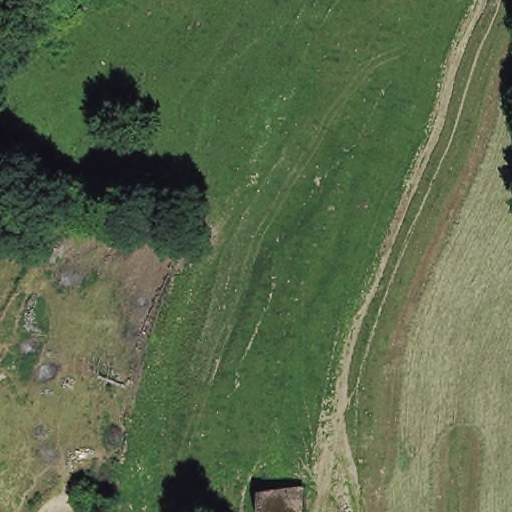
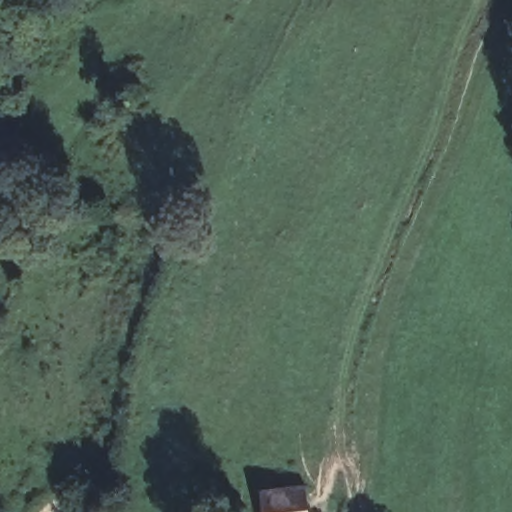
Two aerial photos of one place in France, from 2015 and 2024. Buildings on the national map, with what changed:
unchanged [(307,487),(310,512),(265,512),(262,491),(307,487)]

